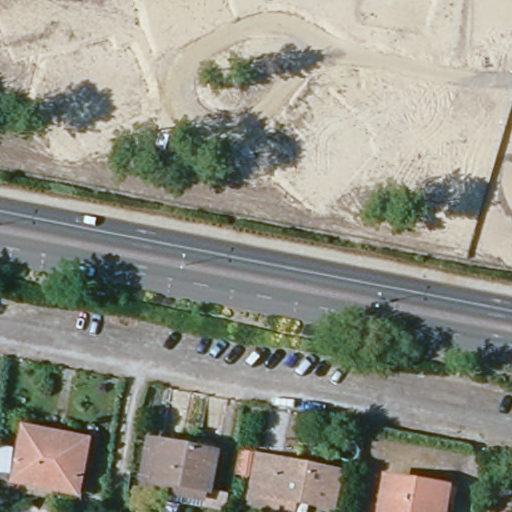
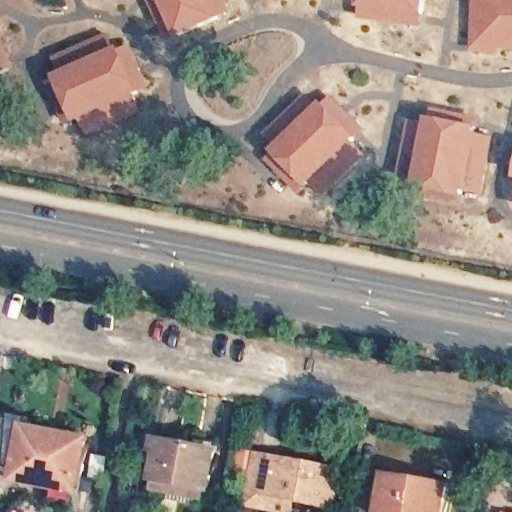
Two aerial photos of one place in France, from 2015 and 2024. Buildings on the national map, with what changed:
new [(232,14),(222,18),(178,38),(168,41),(150,0),(226,0),(232,14)]
new [(273,1),(272,0),(276,0),(273,1)]
new [(425,18),(422,28),(358,20),(358,7),(360,0),(428,0),(425,18)]
new [(500,51),(500,55),(473,54),(475,0),(512,0),(512,51),(500,51)]
new [(4,76),(0,78),(0,30),(17,73),(4,76)]
new [(118,48),(122,46),(124,51),(133,47),(151,91),(143,93),(151,114),(91,138),(83,121),(76,125),(75,122),(67,126),(49,84),(58,82),(56,77),(62,75),(53,60),(108,35),(118,48)]
new [(319,106),(322,102),(326,106),(334,98),(367,132),(360,140),(355,145),(371,159),(327,201),(313,185),(301,195),(267,162),(276,154),(273,151),(277,147),(265,138),(308,96),(319,106)]
new [(426,123),(427,119),(434,120),(437,110),(480,116),(478,128),(477,134),(494,139),(483,198),(466,192),(464,199),(462,210),(412,200),(414,191),(416,173),(400,170),(410,120),(426,123)]
unchanged [(16,480),(17,471),(27,430),(88,443),(78,484),(76,492),(16,480)]
unchanged [(153,492),(156,480),(140,477),(148,439),(215,453),(208,491),(205,503),(153,492)]
unchanged [(276,510),(254,505),(256,492),(263,457),(345,473),(338,508),(298,500),(297,512),(281,512),(276,511),(276,510)]
unchanged [(453,485),(448,512),(384,512),(390,473),(453,485)]

